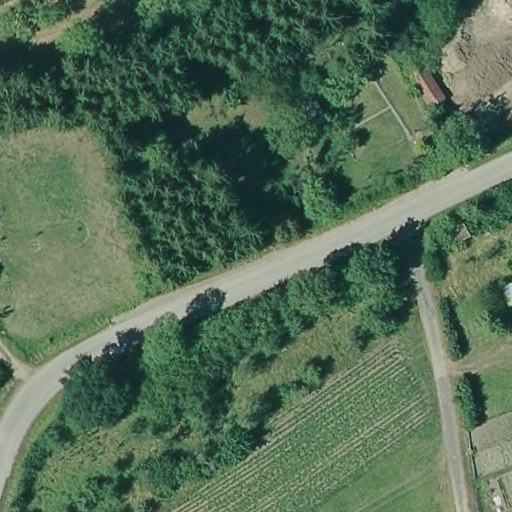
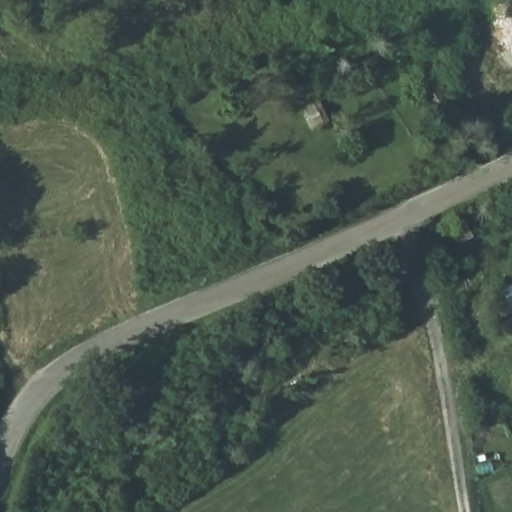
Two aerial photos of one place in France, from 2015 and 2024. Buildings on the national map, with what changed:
unchanged [(299,85),(286,59),(304,49),(321,75),(299,85)]

